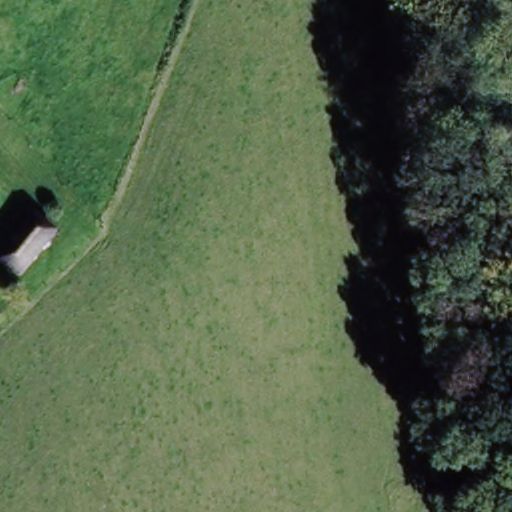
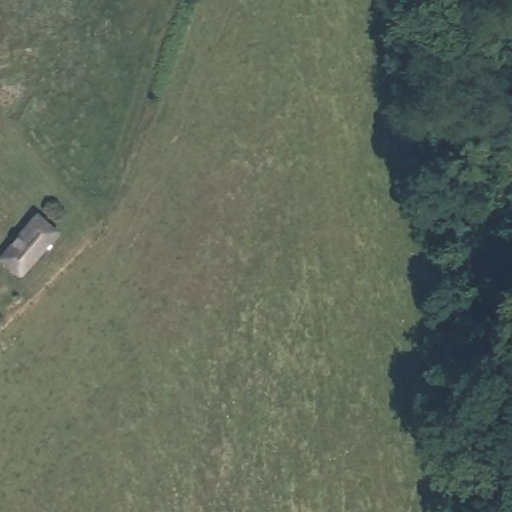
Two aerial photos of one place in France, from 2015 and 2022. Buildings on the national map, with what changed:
unchanged [(18,273),(5,261),(26,235),(39,245),(18,273)]

